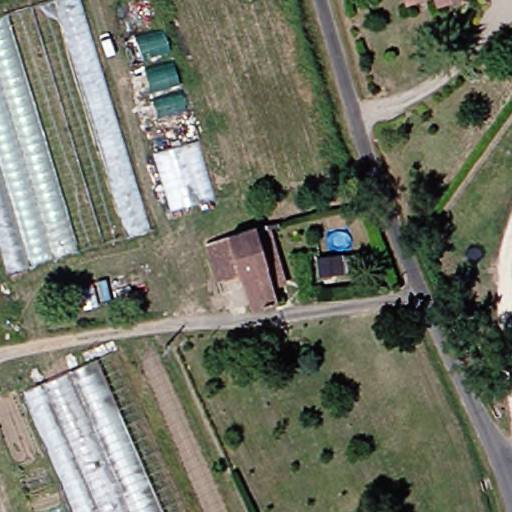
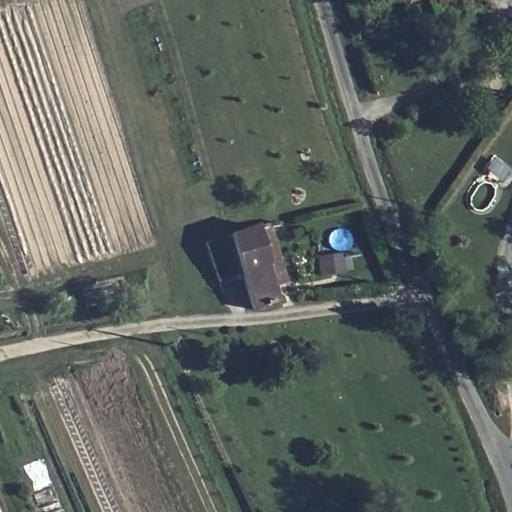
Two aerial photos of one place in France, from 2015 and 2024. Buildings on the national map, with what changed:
demolished [(54,0),(90,0),(161,229),(15,269),(0,217),(0,17),(54,0)]
unchanged [(417,0),(425,0),(418,3),(417,0)]
unchanged [(446,0),(456,0),(447,3),(446,0)]
demolished [(204,168),(213,202),(173,216),(162,182),(204,168)]
unchanged [(263,311),(251,274),(228,282),(216,244),(240,236),(266,228),(279,227),(294,283),(283,286),(288,303),(263,311)]
unchanged [(321,275),(318,259),(341,256),(343,272),(321,275)]
demolished [(124,349),(196,512),(88,512),(33,387),(124,349)]

